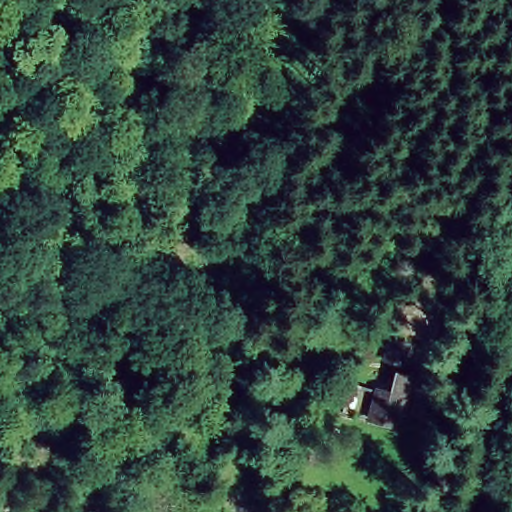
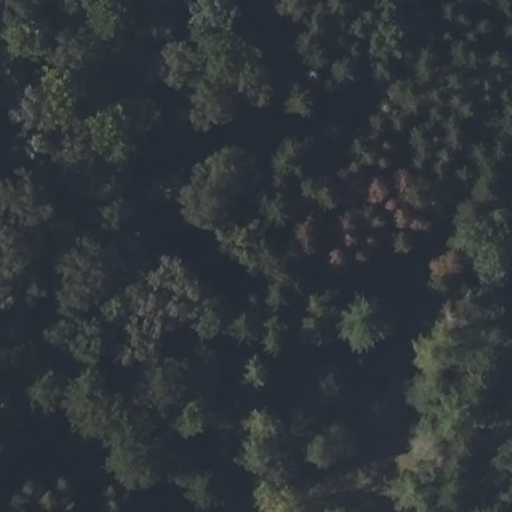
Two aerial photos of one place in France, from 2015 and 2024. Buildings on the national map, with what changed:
unchanged [(425,446),(395,436),(405,409),(435,419),(425,446)]

